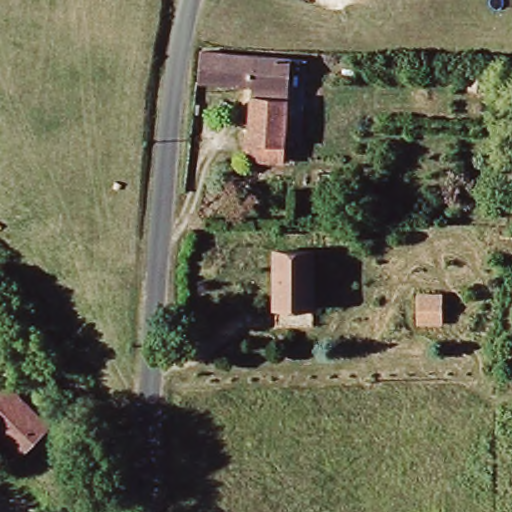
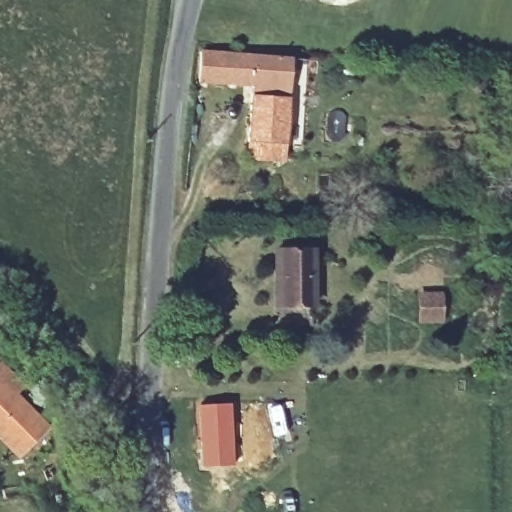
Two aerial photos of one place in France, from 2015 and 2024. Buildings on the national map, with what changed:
unchanged [(198,50),(288,57),(280,160),(244,156),(259,84),(195,80),(198,50)]
unchanged [(315,247),(315,306),(273,308),(273,247),(315,247)]
unchanged [(0,432),(0,381),(46,424),(20,451),(0,432)]
new [(230,403),(233,465),(200,467),(196,404),(230,403)]

